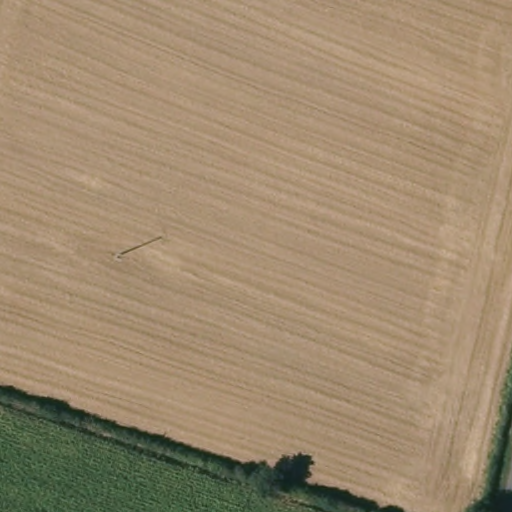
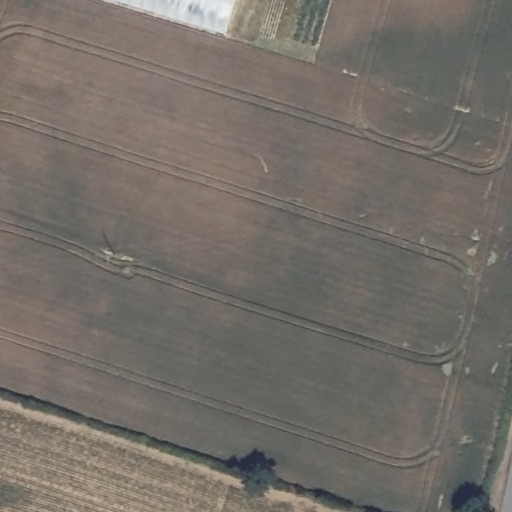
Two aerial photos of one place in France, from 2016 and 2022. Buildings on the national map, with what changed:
new [(236,0),(227,32),(120,0),(236,0)]

